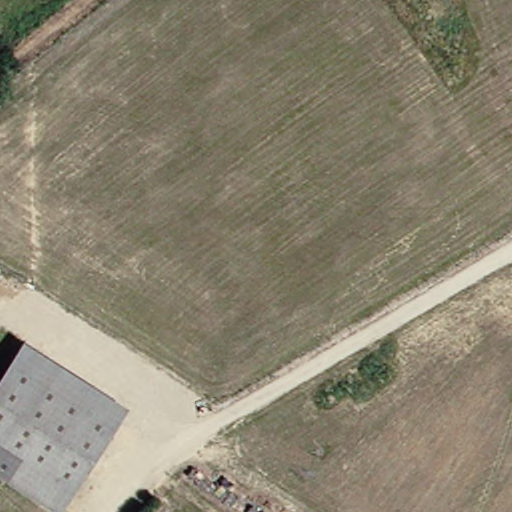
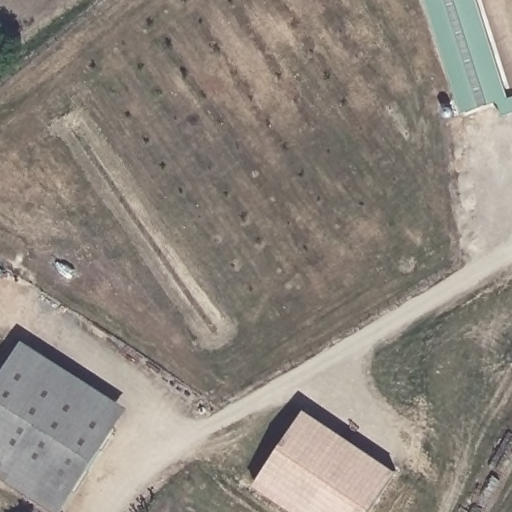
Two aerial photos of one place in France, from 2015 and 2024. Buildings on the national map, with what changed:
new [(512,114),(504,117),(499,102),(464,113),(429,0),(479,0),(512,104),(512,114)]
unchanged [(113,412),(100,432),(0,365),(13,346),(113,412)]
unchanged [(0,365),(100,432),(48,512),(44,512),(0,483),(0,476),(10,460),(0,453),(0,366),(0,365)]
new [(307,412),(397,473),(370,512),(294,512),(256,486),(307,412)]
unchanged [(10,460),(0,476),(0,453),(10,460)]

